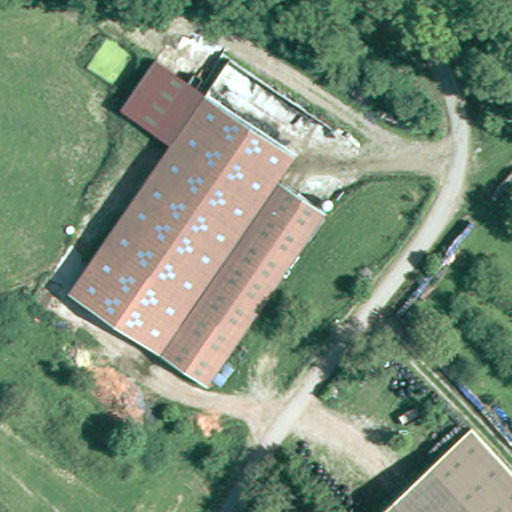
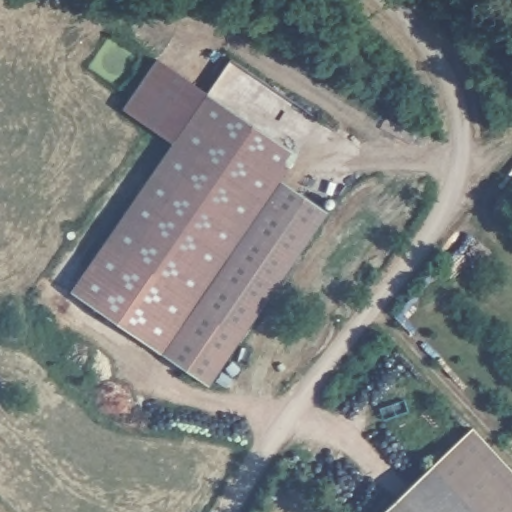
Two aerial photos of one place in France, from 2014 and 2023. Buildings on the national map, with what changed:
unchanged [(119,109),(157,57),(205,91),(170,142),(119,109)]
unchanged [(293,153),(275,179),(157,350),(68,288),(170,142),(205,91),(293,153)]
unchanged [(275,179),(326,212),(209,386),(157,350),(275,179)]
unchanged [(466,427),(512,477),(512,512),(374,512),(466,427)]

